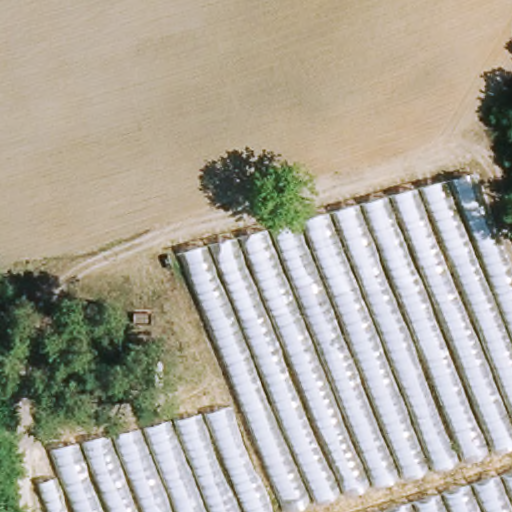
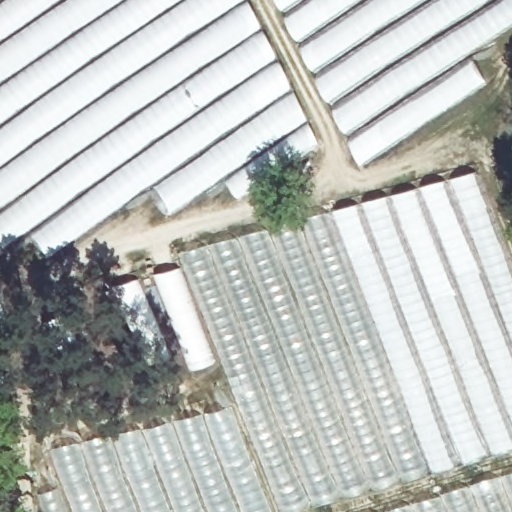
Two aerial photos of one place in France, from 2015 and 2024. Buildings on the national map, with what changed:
new [(0,246),(0,0),(251,0),(314,125),(168,224),(153,198),(55,254),(35,237),(4,252),(0,246)]
new [(334,112),(277,0),(512,0),(512,53),(488,85),(365,164),(334,112)]
unchanged [(209,318),(183,253),(474,170),(507,254),(512,269),(512,449),(296,512),(286,512),(243,403),(209,318)]
unchanged [(38,480),(60,472),(50,448),(230,404),(270,512),(51,512),(38,480)]
unchanged [(512,473),(512,512),(389,512),(512,473)]

